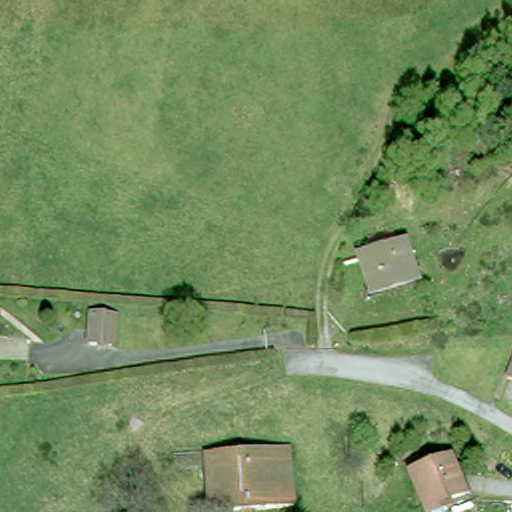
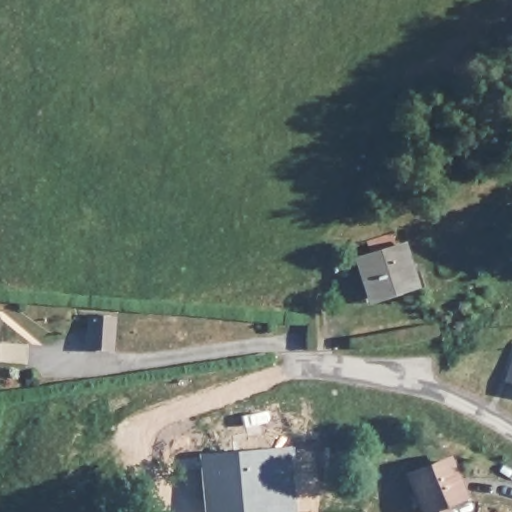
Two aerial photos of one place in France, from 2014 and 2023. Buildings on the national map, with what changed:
unchanged [(408,285),(370,294),(362,259),(400,250),(408,285)]
unchanged [(112,350),(90,349),(93,320),(113,321),(112,350)]
unchanged [(512,366),(512,377),(508,376),(512,366)]
unchanged [(287,447),(292,508),(247,512),(208,512),(205,468),(204,454),(287,447)]
unchanged [(423,512),(413,483),(451,470),(463,505),(443,512),(423,512)]

